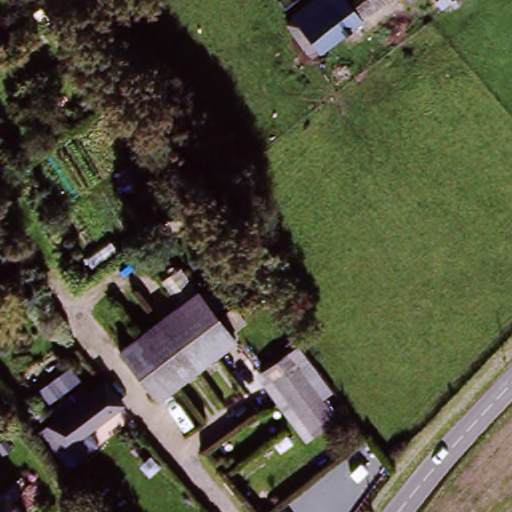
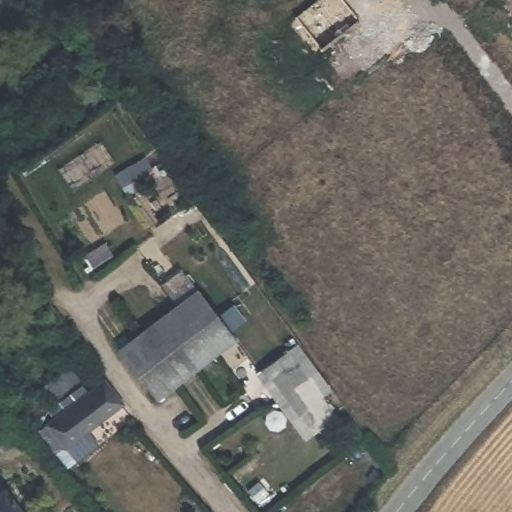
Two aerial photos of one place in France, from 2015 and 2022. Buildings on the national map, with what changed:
unchanged [(285,16),(306,0),(389,0),(315,55),(285,16)]
unchanged [(142,342),(159,328),(180,312),(200,298),(219,322),(235,343),(216,358),(196,374),(177,387),(157,404),(141,385),(120,360),(142,342)]
unchanged [(315,438),(302,420),(287,401),(273,383),(291,368),(305,386),(320,405),(332,422),(315,438)]
unchanged [(106,384),(118,397),(125,406),(60,459),(40,435),(106,384)]
unchanged [(5,498),(17,512),(0,512),(0,501),(5,498)]

